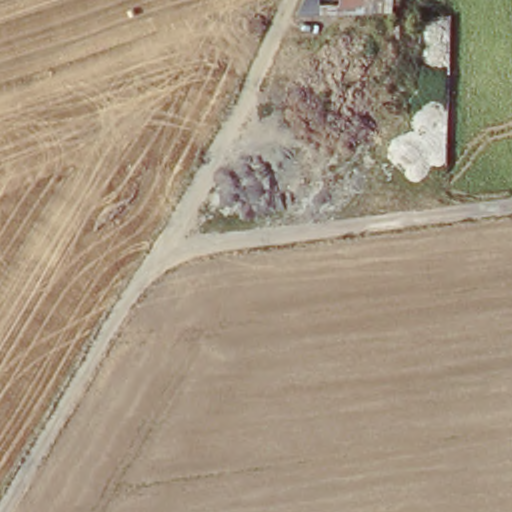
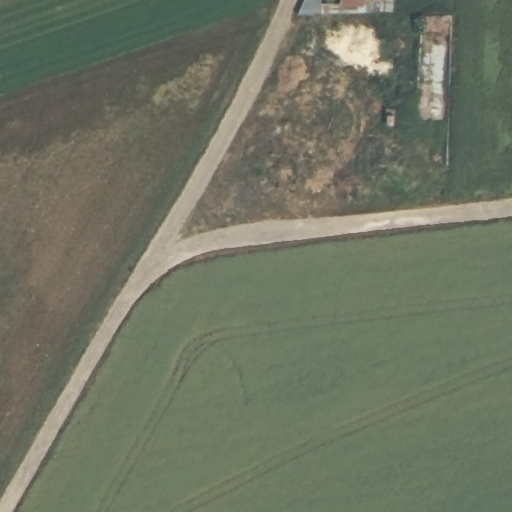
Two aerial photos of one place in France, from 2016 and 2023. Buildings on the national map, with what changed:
unchanged [(322,19),(319,6),(340,2),(341,0),(396,0),(395,17),(322,19)]

